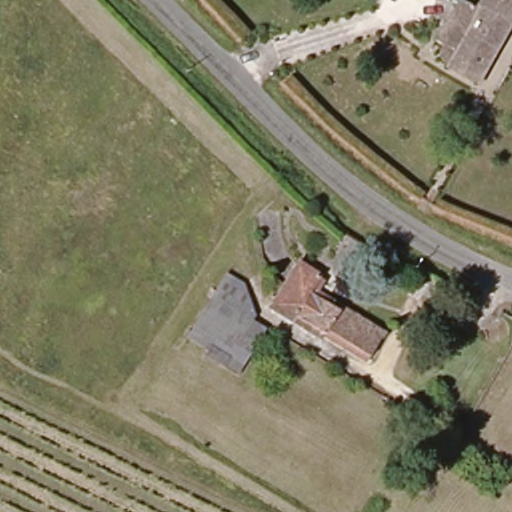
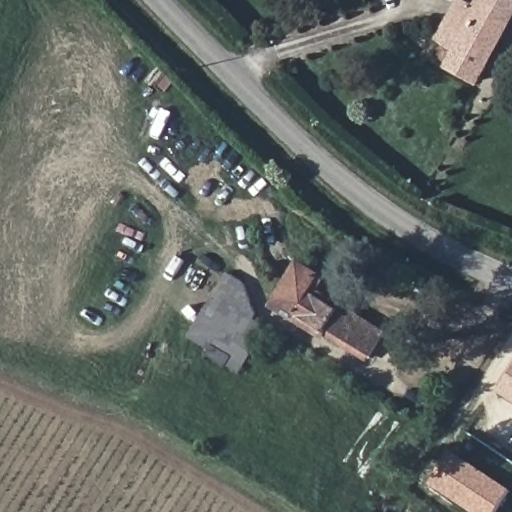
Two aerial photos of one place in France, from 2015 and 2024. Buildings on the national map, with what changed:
unchanged [(459,0),(465,0),(510,25),(507,29),(503,38),(483,78),(481,82),(448,65),(456,51),(450,47),(435,39),(457,2),(459,0)]
unchanged [(480,1),(481,0),(512,0),(512,24),(488,10),(486,10),(478,5),(480,1)]
unchanged [(440,273),(432,289),(410,278),(419,262),(440,273)]
unchanged [(291,263),(315,280),(305,293),(325,306),(330,300),(379,334),(362,358),(323,332),(318,339),(268,305),(291,263)]
unchanged [(255,316),(266,325),(239,370),(182,334),(223,268),(246,283),(255,316)]
new [(496,391),(512,367),(512,402),(496,391)]
new [(494,512),(472,512),(428,483),(449,451),(508,490),(494,512)]

